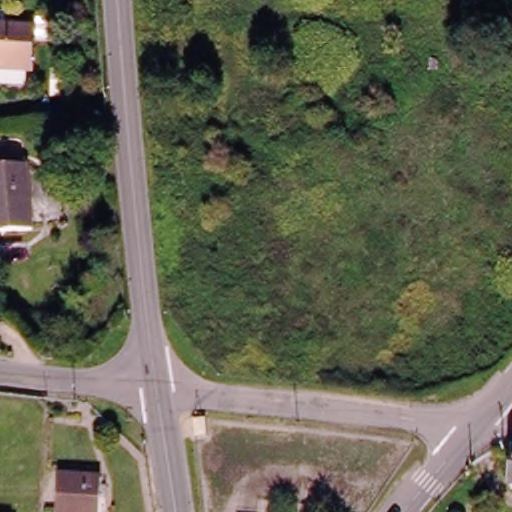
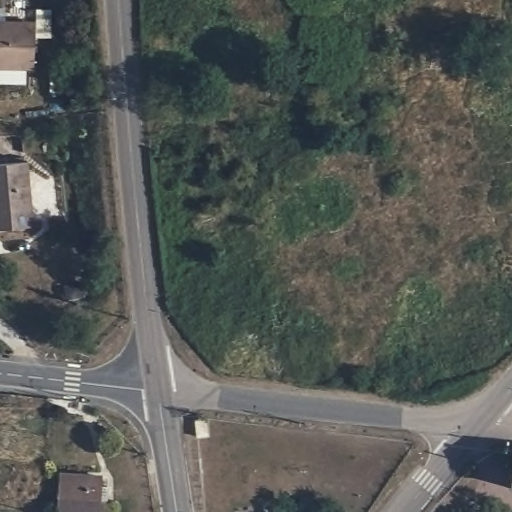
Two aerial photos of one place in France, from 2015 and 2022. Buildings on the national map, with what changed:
unchanged [(0,16),(23,14),(26,56),(27,74),(0,76),(0,16)]
unchanged [(0,164),(20,161),(28,225),(0,229),(0,164)]
unchanged [(510,485),(512,467),(512,486),(510,485)]
unchanged [(54,512),(56,474),(98,476),(95,512),(54,512)]

